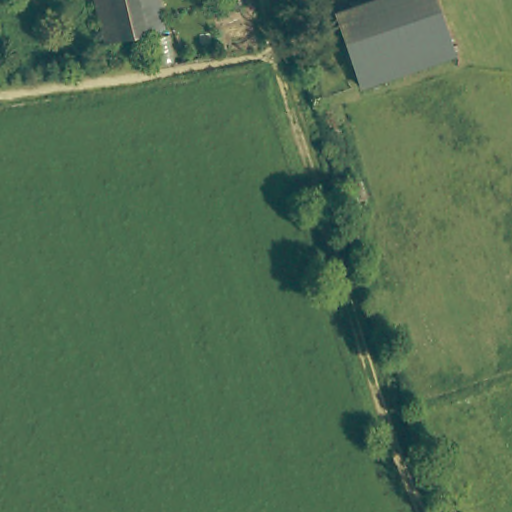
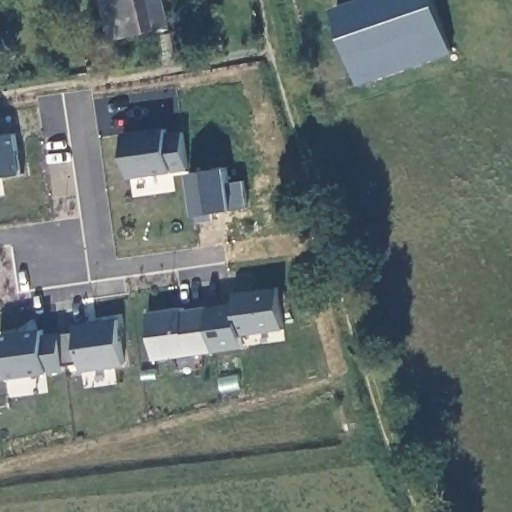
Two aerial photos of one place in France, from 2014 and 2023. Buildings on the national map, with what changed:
unchanged [(162,0),(169,30),(151,34),(109,41),(101,0),(162,0)]
unchanged [(355,79),(350,63),(335,14),(377,0),(433,0),(436,7),(449,49),(355,79)]
new [(167,127),(168,133),(182,131),(189,171),(174,173),(131,177),(124,131),(167,127)]
new [(21,174),(0,178),(0,134),(16,132),(21,174)]
new [(182,306),(182,310),(236,301),(235,291),(280,288),(287,331),(241,336),(243,350),(156,361),(148,312),(182,306)]
new [(44,327),(45,335),(76,330),(76,321),(120,316),(127,366),(82,371),(81,363),(67,365),(68,371),(7,380),(1,333),(44,327)]

